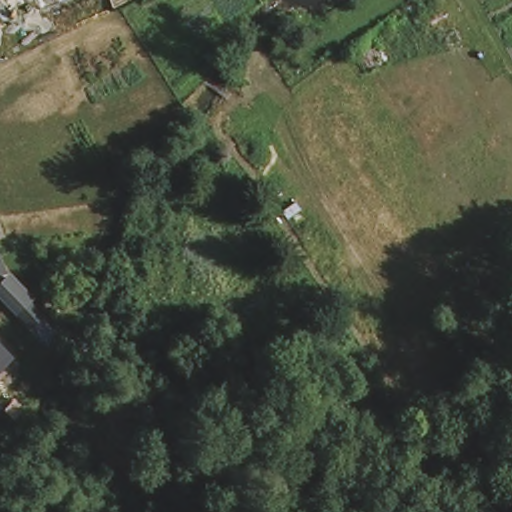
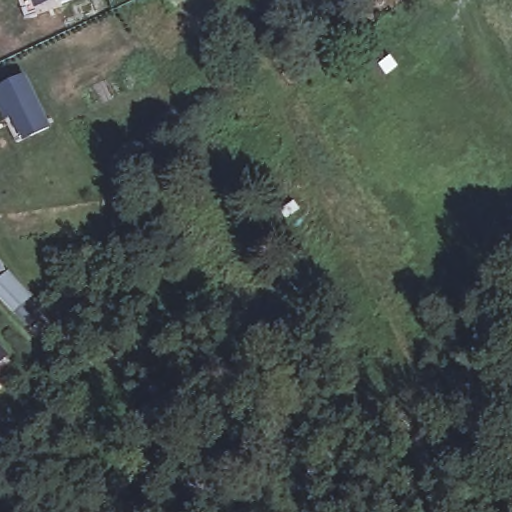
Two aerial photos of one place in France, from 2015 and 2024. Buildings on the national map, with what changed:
new [(24,78),(43,120),(20,130),(9,105),(2,109),(0,104),(0,88),(24,78)]
unchanged [(12,272),(47,312),(29,329),(0,298),(0,283),(12,272)]
unchanged [(9,355),(0,363),(0,346),(9,355)]

